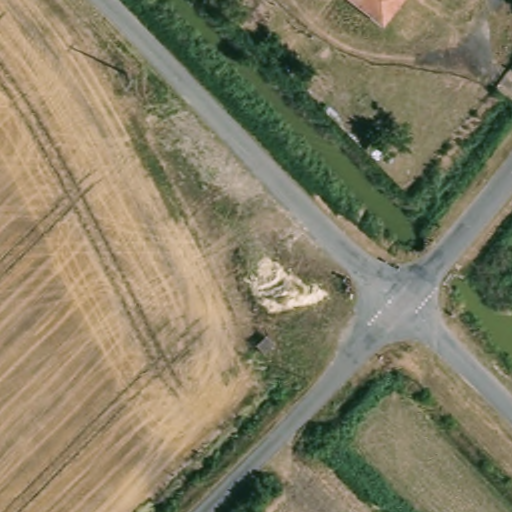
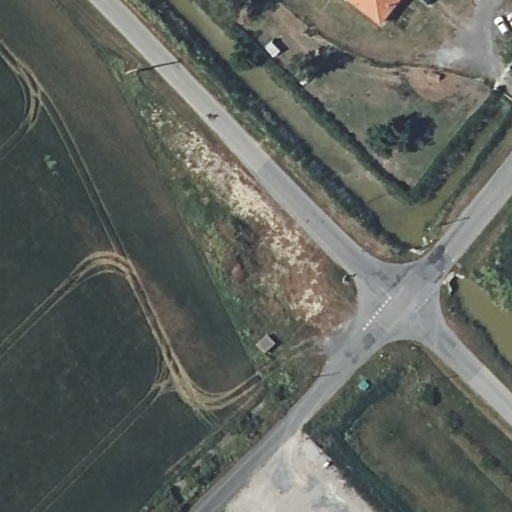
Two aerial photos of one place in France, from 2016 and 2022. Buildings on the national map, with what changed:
unchanged [(357,0),(410,0),(386,27),(357,0)]

